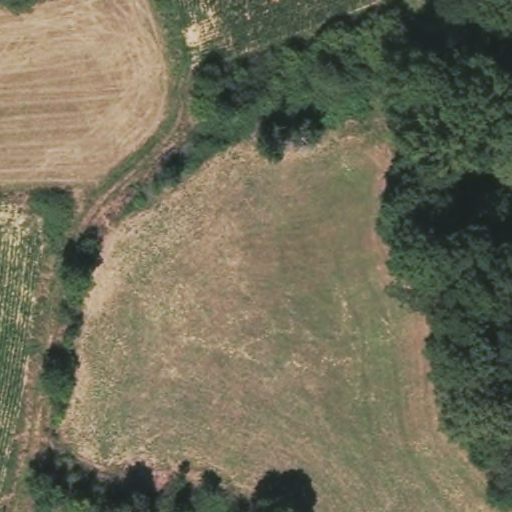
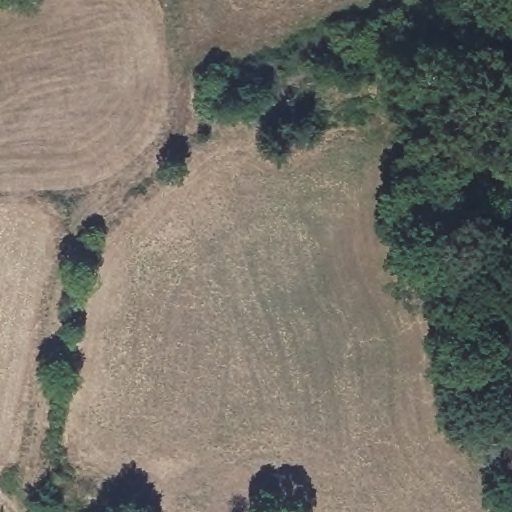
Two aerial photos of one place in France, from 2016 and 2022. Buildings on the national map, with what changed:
unchanged [(49,495),(47,512),(33,512),(36,494),(49,495)]

